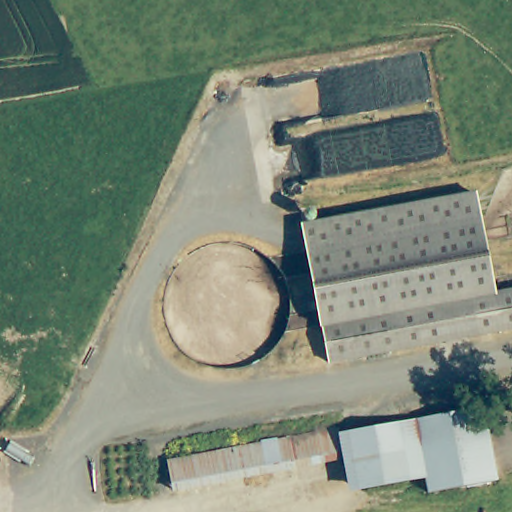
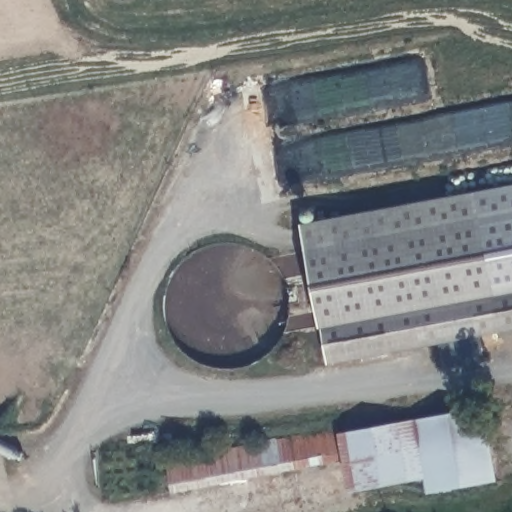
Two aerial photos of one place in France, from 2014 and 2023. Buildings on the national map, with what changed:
new [(512,288),(499,291),(482,190),(512,184),(512,288)]
unchanged [(482,190),(499,291),(512,288),(512,327),(440,339),(327,358),(321,320),(305,221),(482,190)]
unchanged [(486,410),(497,481),(430,492),(428,477),(419,419),(486,410)]
unchanged [(419,419),(428,477),(342,490),(337,452),(334,432),(419,419)]
unchanged [(1,423),(0,425),(0,423),(1,423)]
unchanged [(334,432),(187,475),(334,432),(337,452),(165,483),(162,461),(175,458),(185,457),(334,432)]

